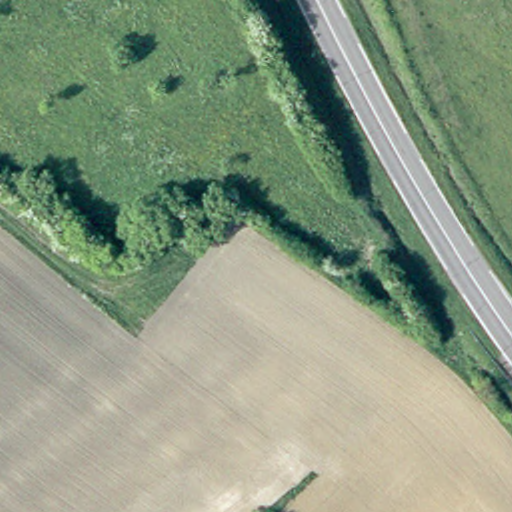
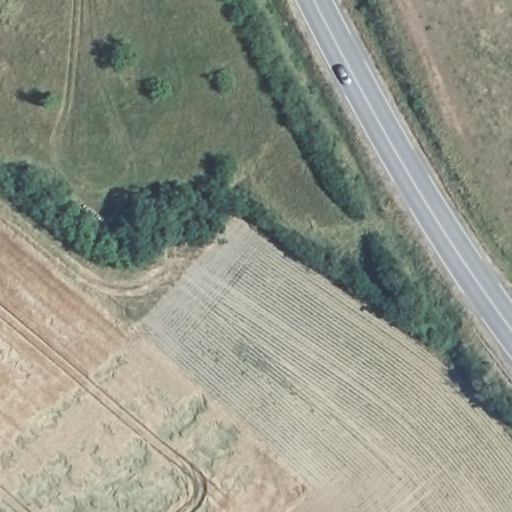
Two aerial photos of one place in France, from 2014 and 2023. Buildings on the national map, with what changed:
[]

